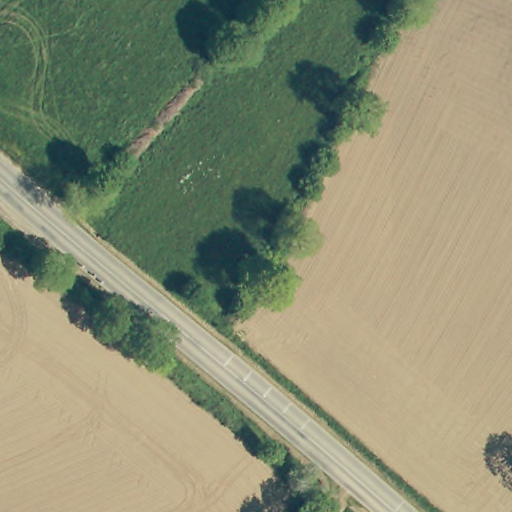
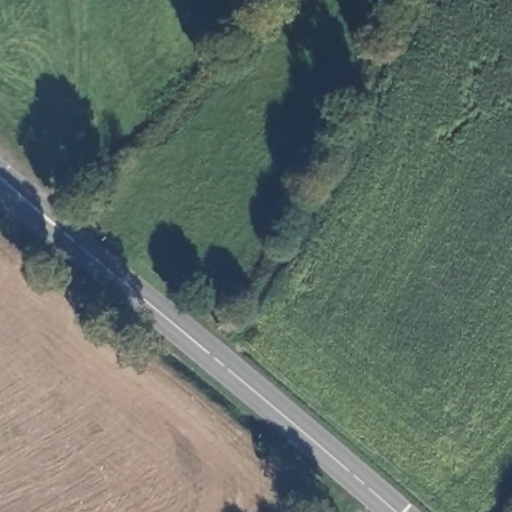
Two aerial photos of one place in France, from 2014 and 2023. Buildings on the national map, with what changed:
[]

